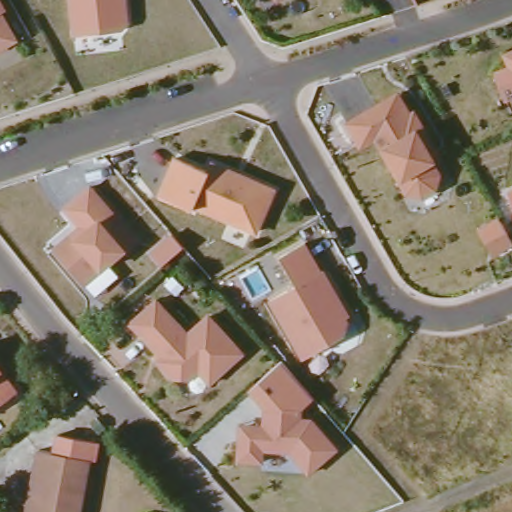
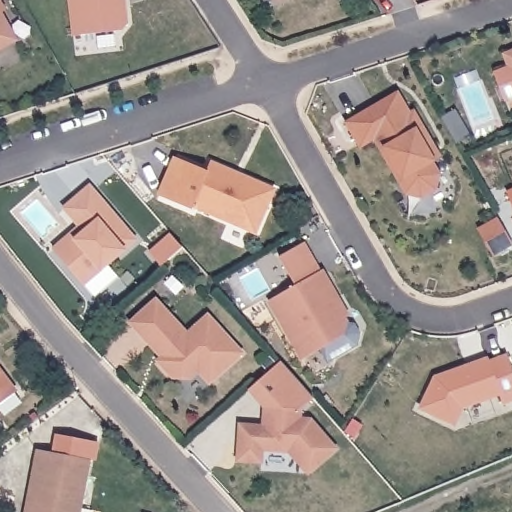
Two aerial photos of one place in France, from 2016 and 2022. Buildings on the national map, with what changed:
unchanged [(4,13),(19,42),(0,53),(0,0),(2,0),(8,10),(4,13)]
unchanged [(131,22),(126,30),(73,37),(69,0),(129,0),(131,22)]
unchanged [(505,57),(512,55),(512,74),(505,57)]
unchanged [(436,162),(434,163),(442,175),(437,191),(423,199),(408,195),(400,181),(403,180),(379,138),(361,148),(348,124),(379,107),(401,94),(404,100),(412,113),(416,111),(433,142),(443,158),(436,162)]
unchanged [(269,208),(258,235),(196,208),(194,211),(161,197),(178,159),(209,173),(213,165),(231,173),(244,179),(264,187),(276,193),(269,208)]
unchanged [(80,229),(65,211),(89,190),(135,242),(83,287),(58,258),(53,252),(80,229)]
unchanged [(511,210),(507,192),(512,190),(512,212),(511,210)]
unchanged [(296,287),(279,257),(307,242),(324,270),(296,287)]
unchanged [(349,315),(344,337),(302,361),(268,303),(324,270),(349,315)]
unchanged [(156,362),(159,359),(128,323),(156,300),(187,336),(208,318),(241,356),(206,386),(196,373),(178,388),(171,380),(156,362)]
new [(486,358),(488,360),(506,353),(512,369),(512,400),(502,403),(499,396),(463,408),(455,426),(418,409),(433,377),(486,358)]
new [(263,407),(248,390),(279,361),(312,397),(299,409),(263,407)]
unchanged [(0,376),(13,393),(0,402),(0,376)]
unchanged [(304,410),(304,419),(314,420),(338,450),(310,476),(291,453),(261,453),(261,465),(236,463),(238,424),(262,426),(263,407),(304,410)]
unchanged [(29,504),(35,470),(30,470),(33,450),(83,458),(74,512),(33,512),(34,504),(29,504)]

